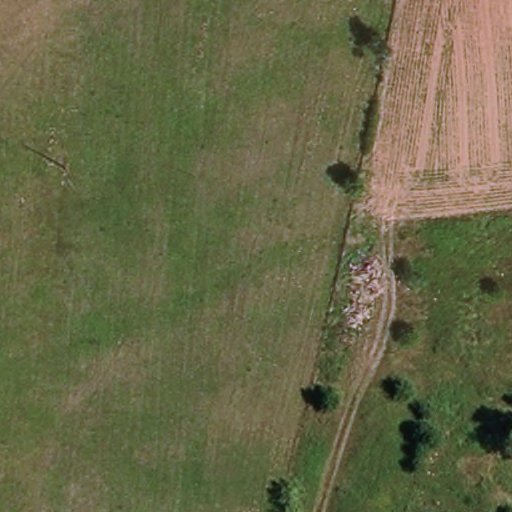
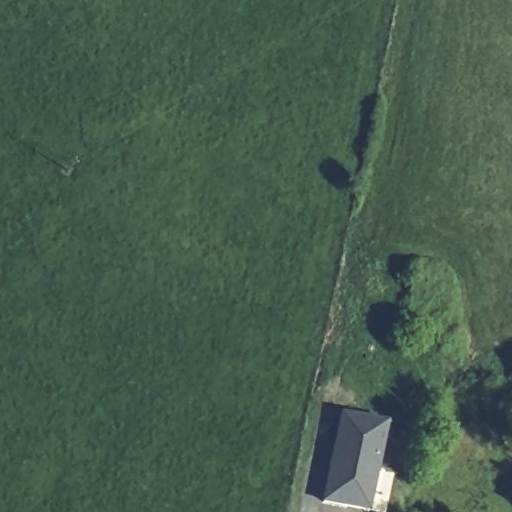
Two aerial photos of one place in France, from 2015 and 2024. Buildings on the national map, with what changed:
new [(369,512),(366,512),(320,504),(338,412),(388,423),(369,512)]

